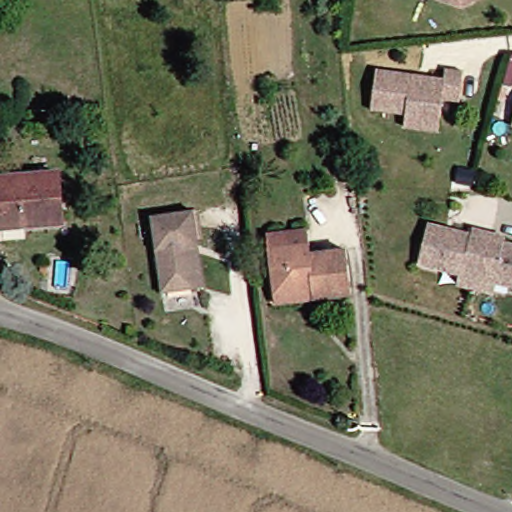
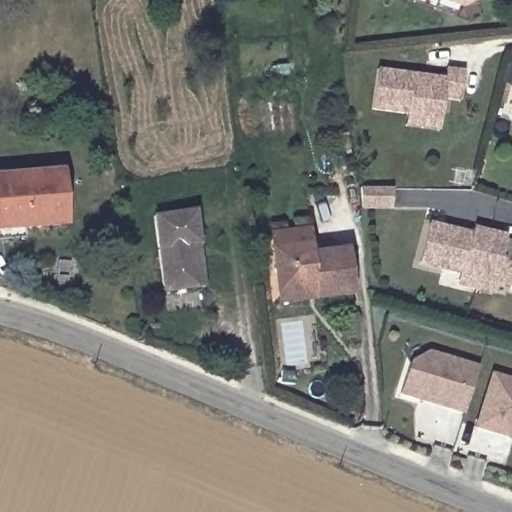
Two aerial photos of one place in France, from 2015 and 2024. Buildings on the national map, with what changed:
unchanged [(440,1),(437,0),(483,0),(477,3),(463,10),(440,1)]
unchanged [(406,126),(407,115),(373,110),(379,70),(446,80),(448,70),(466,72),(461,102),(445,100),(442,120),(440,131),(406,126)]
unchanged [(25,236),(0,239),(0,177),(85,168),(91,219),(24,226),(25,236)]
new [(365,189),(395,190),(394,209),(365,207),(365,189)]
unchanged [(198,246),(203,289),(167,293),(159,217),(200,212),(204,245),(198,246)]
unchanged [(476,288),(458,283),(460,272),(418,261),(428,222),(471,234),(473,227),(490,232),(505,236),(503,241),(512,244),(512,286),(493,281),(491,291),(476,288)]
unchanged [(276,292),(271,250),(310,245),(312,255),(348,252),(353,296),(316,301),(276,305),(276,292)]
new [(415,360),(434,350),(482,365),(468,410),(405,391),(415,360)]
new [(497,371),(512,376),(512,434),(481,425),(497,371)]

